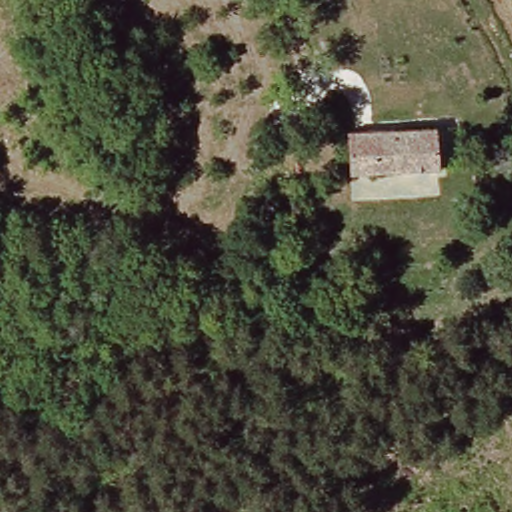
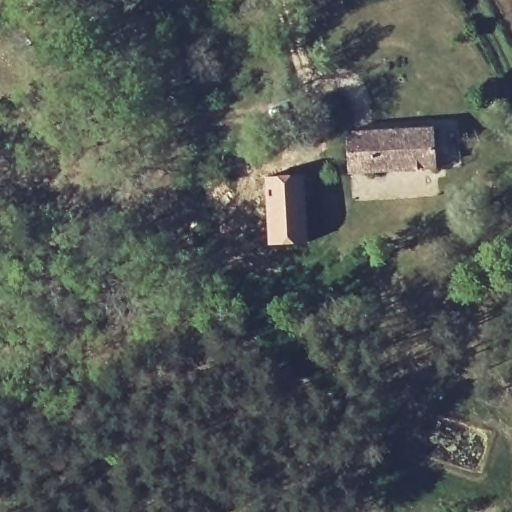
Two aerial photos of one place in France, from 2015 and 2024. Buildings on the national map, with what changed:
unchanged [(344,141),(344,133),(432,129),(433,168),(347,171),(344,141)]
new [(304,174),(308,243),(268,246),(262,178),(304,174)]

